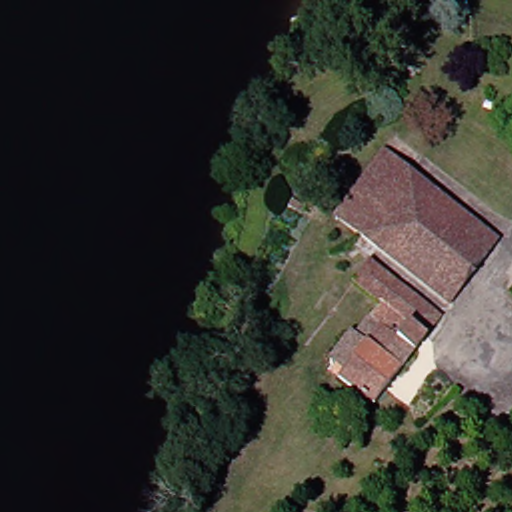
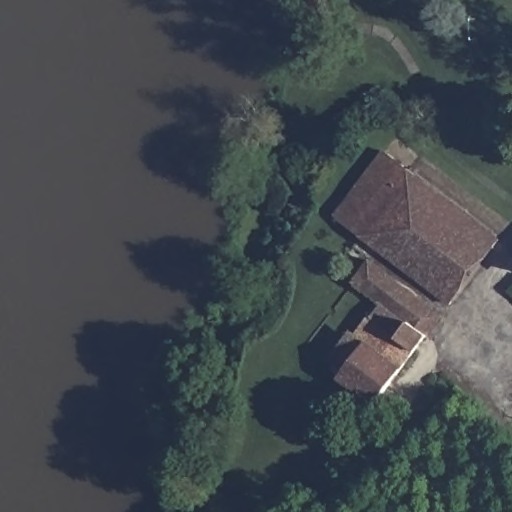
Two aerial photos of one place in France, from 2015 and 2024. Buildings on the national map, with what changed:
unchanged [(437,285),(369,235),(345,217),(395,151),(418,169),(510,237),(494,260),(469,242),(437,285)]
unchanged [(460,303),(437,285),(469,242),(494,260),(460,303)]
unchanged [(342,360),(362,331),(366,335),(377,319),(377,318),(388,303),(362,285),(363,285),(380,263),(382,260),(453,310),(450,315),(385,404),(350,379),(375,344),(391,355),(403,338),(387,325),(355,369),(342,360)]

